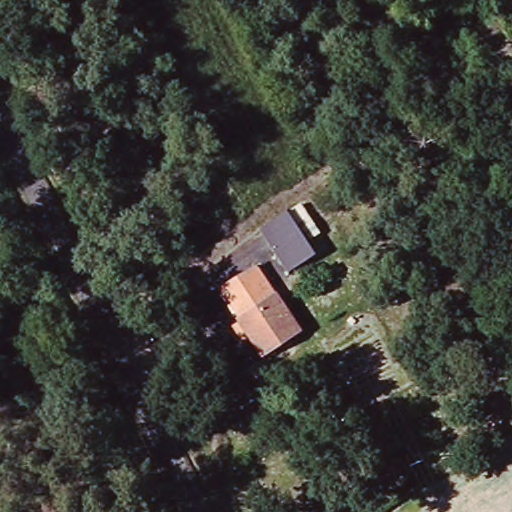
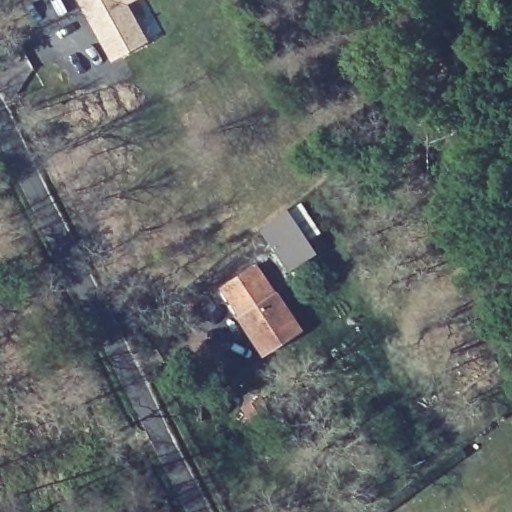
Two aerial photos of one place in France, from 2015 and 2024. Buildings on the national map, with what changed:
new [(122,0),(119,1),(139,40),(107,56),(97,38),(91,27),(76,0),(122,0)]
unchanged [(322,232),(307,242),(315,254),(288,270),(260,231),(301,202),(322,232)]
unchanged [(300,333),(264,355),(240,319),(223,291),(233,285),(258,268),(300,333)]

